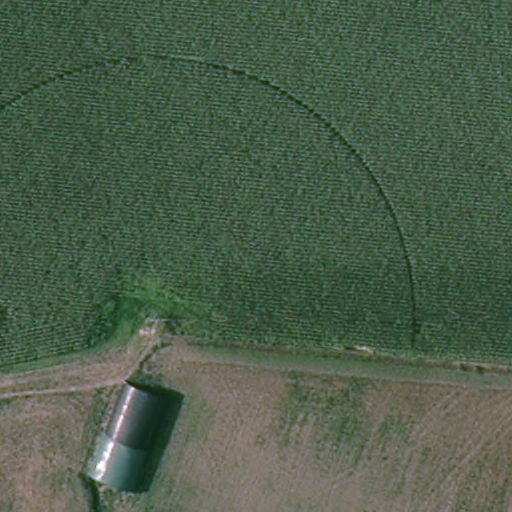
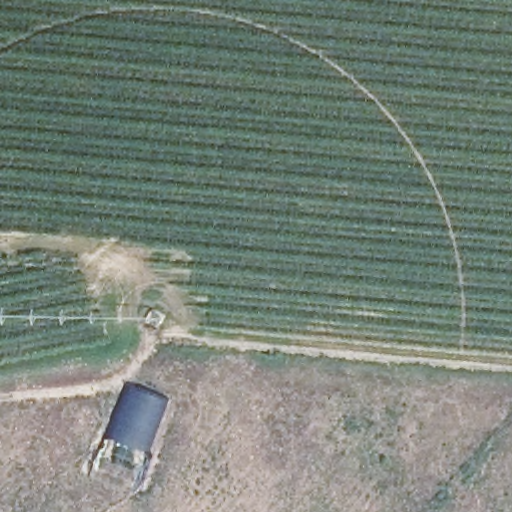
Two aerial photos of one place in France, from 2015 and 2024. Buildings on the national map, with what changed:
unchanged [(169,398),(134,492),(88,476),(125,382),(169,398)]

